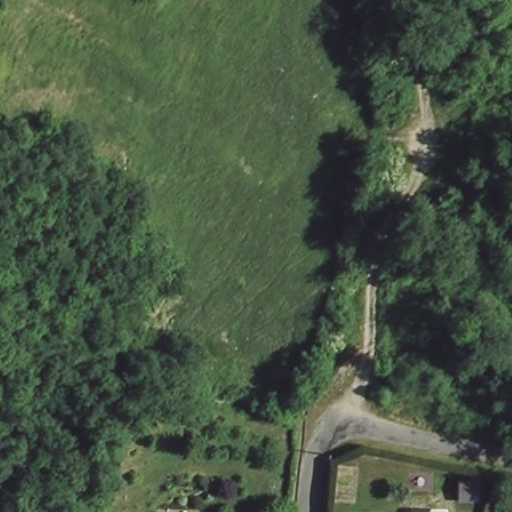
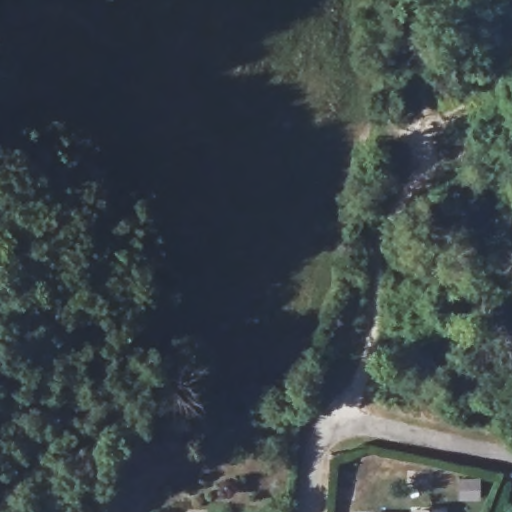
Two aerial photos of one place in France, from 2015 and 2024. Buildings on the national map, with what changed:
unchanged [(388,373),(407,376),(401,415),(384,410),(388,373)]

